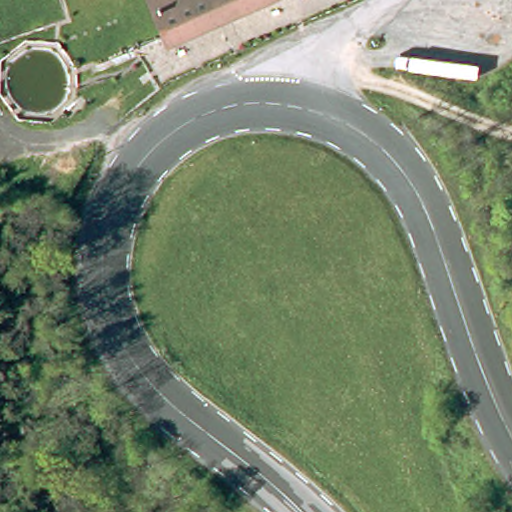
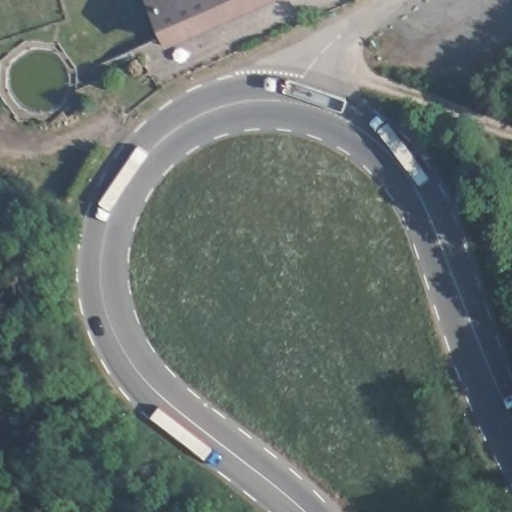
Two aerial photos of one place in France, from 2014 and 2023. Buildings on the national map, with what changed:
unchanged [(148,0),(270,0),(217,23),(220,32),(205,38),(201,31),(179,40),(169,17),(158,22),(148,0)]

